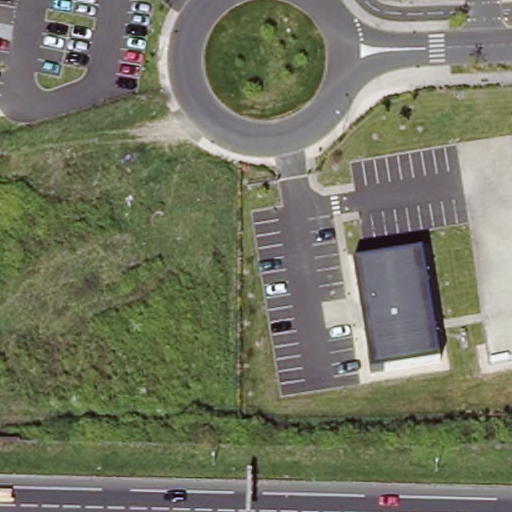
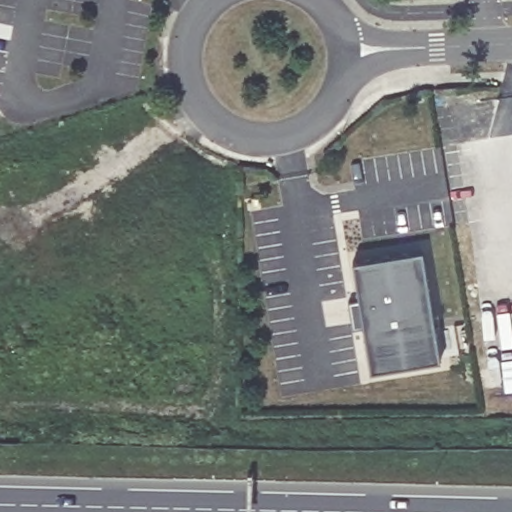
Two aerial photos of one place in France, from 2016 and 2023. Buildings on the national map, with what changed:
unchanged [(440,359),(371,371),(354,264),(421,253),(440,359)]

